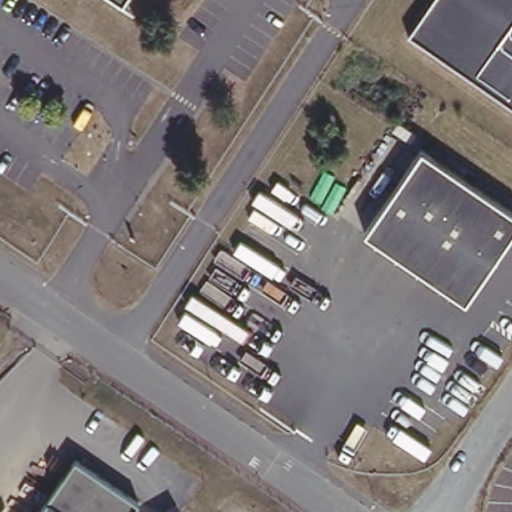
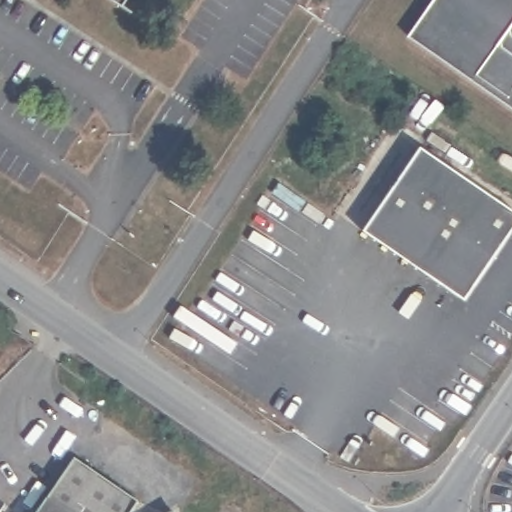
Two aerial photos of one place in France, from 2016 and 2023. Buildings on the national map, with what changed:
unchanged [(430,0),(512,0),(512,105),(407,32),(430,0)]
unchanged [(512,225),(463,297),(362,229),(419,144),(512,206),(512,225)]
unchanged [(82,457),(146,501),(138,512),(44,512),(82,457)]

